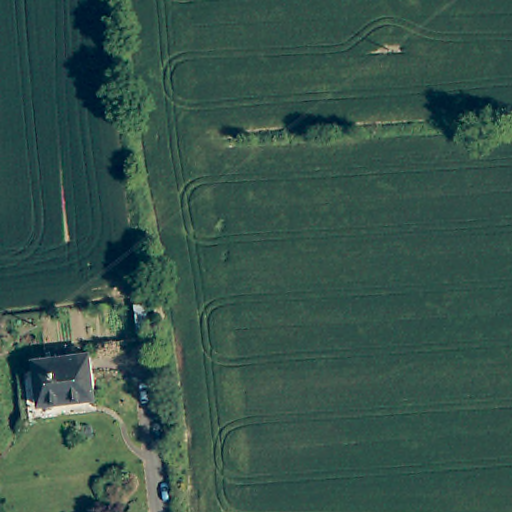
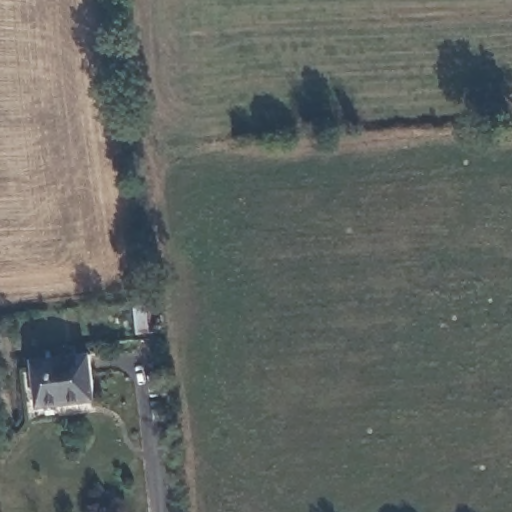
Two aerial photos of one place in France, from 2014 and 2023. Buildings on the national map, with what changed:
unchanged [(94,399),(39,404),(35,355),(90,349),(94,399)]

